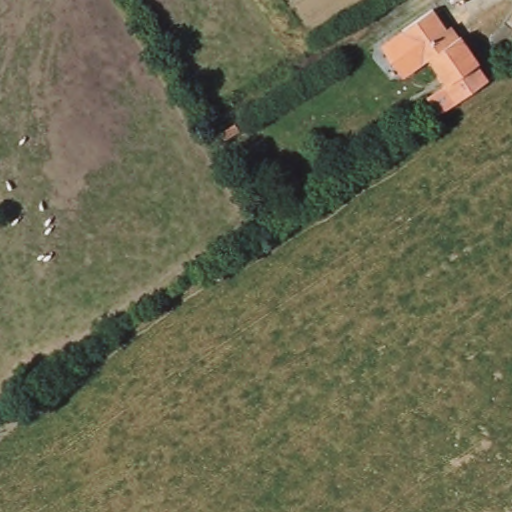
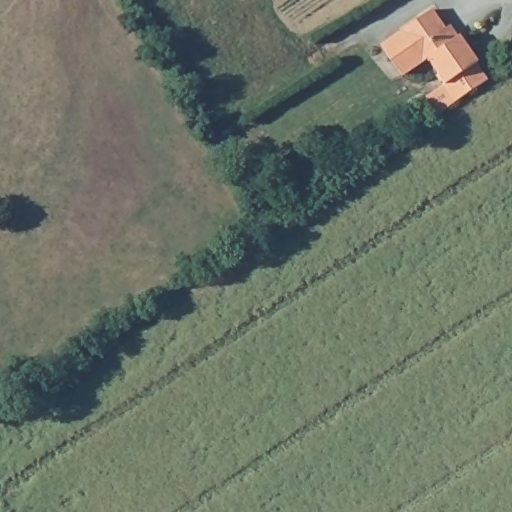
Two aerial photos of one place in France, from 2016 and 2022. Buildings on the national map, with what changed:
unchanged [(424,96),(440,85),(423,59),(417,63),(396,31),(432,7),(453,38),(457,35),(487,79),(452,103),(436,115),(424,96)]

